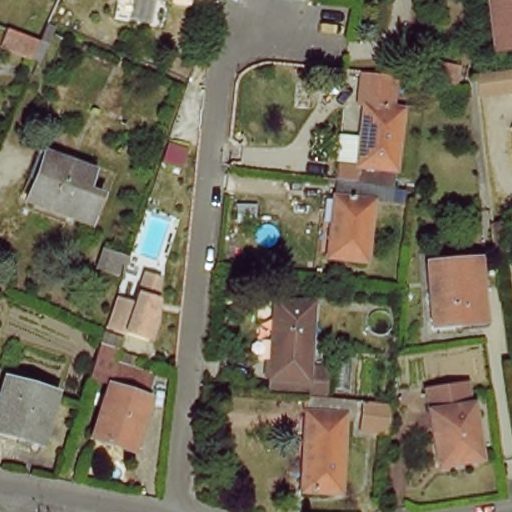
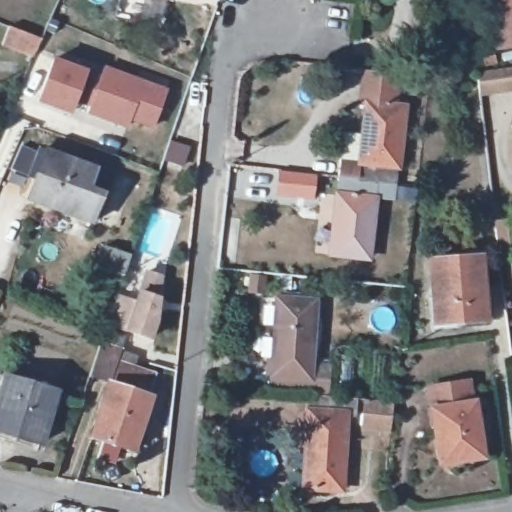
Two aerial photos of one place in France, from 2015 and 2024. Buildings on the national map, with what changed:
unchanged [(492,0),(512,0),(512,47),(498,49),(492,0)]
new [(42,42),(34,59),(3,48),(10,30),(42,42)]
new [(61,108),(41,101),(56,60),(103,76),(93,104),(78,99),(75,109),(73,112),(61,108)]
new [(154,130),(132,121),(130,131),(89,116),(111,69),(168,89),(154,130)]
unchanged [(360,180),(368,103),(403,106),(395,184),(360,180)]
unchanged [(95,185),(108,189),(99,217),(32,195),(37,178),(31,176),(41,149),(60,156),(101,169),(95,185)]
unchanged [(395,184),(393,199),(378,197),(371,258),(332,254),(342,178),(360,180),(395,184)]
unchanged [(484,225),(506,222),(508,241),(487,245),(484,225)]
unchanged [(99,271),(106,250),(132,259),(124,279),(99,271)]
unchanged [(491,315),(440,321),(434,258),(485,253),(491,315)]
unchanged [(118,299),(135,305),(147,276),(168,284),(149,341),(130,334),(107,327),(118,299)]
unchanged [(309,375),(271,371),(279,296),(316,299),(309,375)]
unchanged [(108,335),(109,335),(130,343),(125,360),(159,371),(152,392),(157,394),(138,448),(97,435),(115,381),(95,374),(108,335)]
unchanged [(13,371),(62,389),(42,445),(19,437),(0,431),(0,408),(13,371)]
unchanged [(349,490),(312,485),(322,392),(348,395),(368,396),(366,417),(357,416),(349,490)]
unchanged [(486,457),(444,463),(436,406),(479,399),(486,457)]
unchanged [(366,437),(368,407),(394,410),(391,440),(366,437)]

